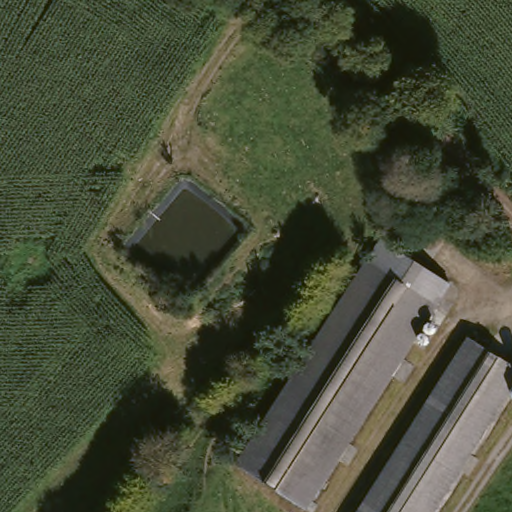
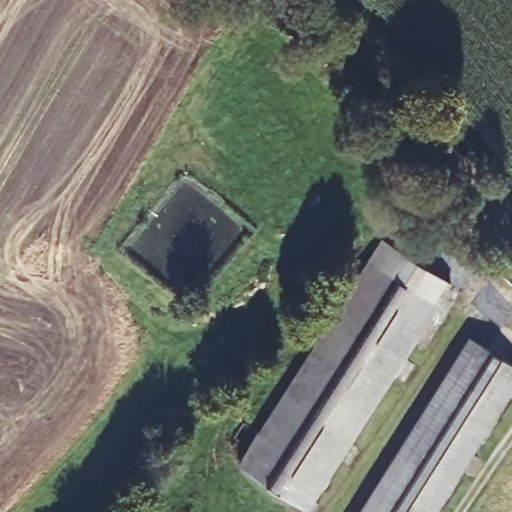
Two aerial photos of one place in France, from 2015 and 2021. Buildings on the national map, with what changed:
unchanged [(378,233),(446,276),(433,298),(363,256),(378,233)]
unchanged [(306,508),(236,466),(363,256),(433,298),(306,508)]
unchanged [(512,368),(512,386),(435,512),(355,512),(461,339),(512,368)]

